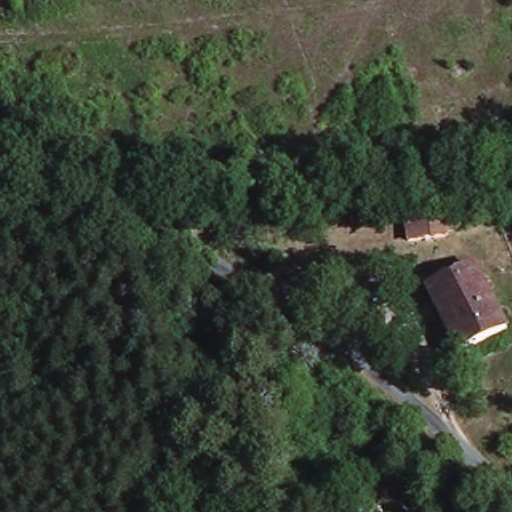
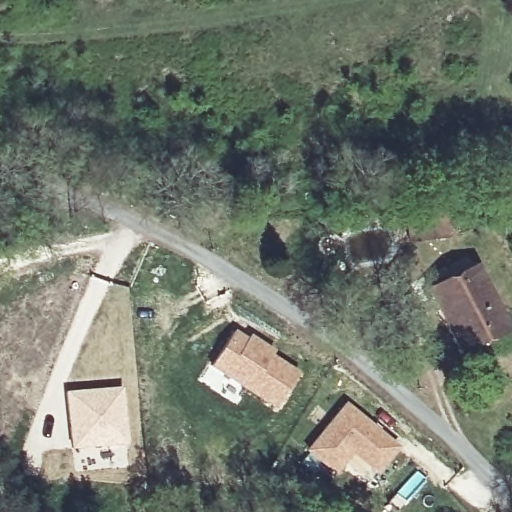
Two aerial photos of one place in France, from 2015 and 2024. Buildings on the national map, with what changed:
unchanged [(431,290),(479,268),(510,337),(463,360),(431,290)]
new [(248,340),(251,337),(265,345),(276,352),(273,357),(300,374),(278,407),(213,365),(235,332),(248,340)]
new [(124,386),(128,443),(69,447),(66,390),(124,386)]
new [(347,405),(397,448),(376,472),(352,451),(335,471),(309,450),(347,405)]

